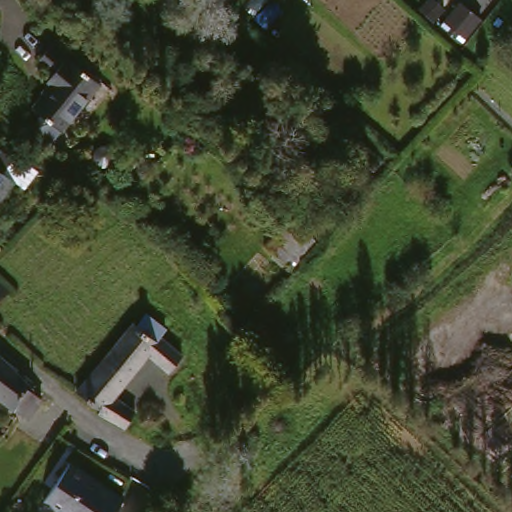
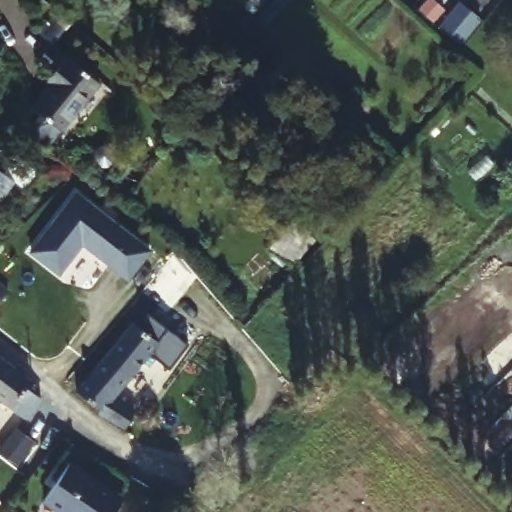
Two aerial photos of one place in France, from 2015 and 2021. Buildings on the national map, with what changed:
unchanged [(485,22),(472,38),(466,45),(448,29),(467,7),(485,22)]
unchanged [(73,58),(75,56),(108,86),(69,130),(38,104),(56,83),(51,79),(59,69),(46,56),(57,44),(73,58)]
unchanged [(34,169),(0,212),(0,149),(4,145),(34,169)]
new [(77,189),(154,242),(134,271),(86,238),(64,270),(35,250),(77,189)]
unchanged [(304,237),(287,255),(269,239),(284,221),(304,237)]
unchanged [(0,302),(0,280),(11,290),(0,302)]
unchanged [(144,326),(155,313),(176,332),(169,339),(191,359),(176,376),(154,357),(118,398),(154,427),(145,443),(105,416),(106,412),(85,393),(141,324),(144,326)]
unchanged [(47,405),(33,421),(29,417),(0,394),(0,352),(20,368),(40,385),(34,393),(40,398),(41,396),(44,401),(47,405)]
new [(16,425),(35,437),(20,460),(1,448),(16,425)]
unchanged [(238,444),(255,460),(242,474),(224,458),(238,444)]
unchanged [(127,506),(122,512),(73,512),(52,493),(80,463),(127,506)]

